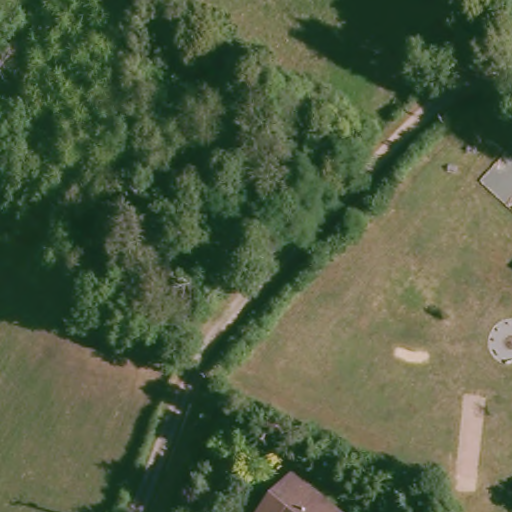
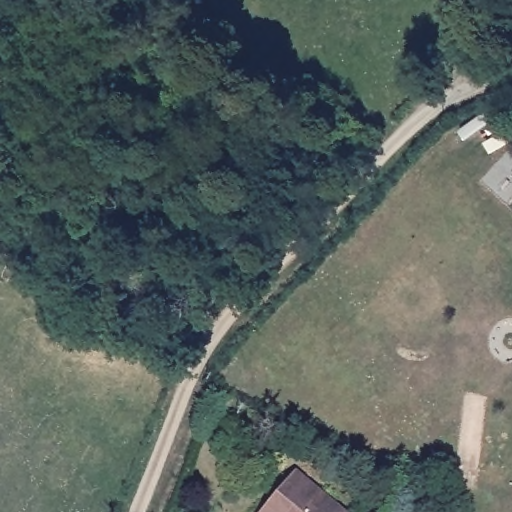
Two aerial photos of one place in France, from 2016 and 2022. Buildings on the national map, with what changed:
unchanged [(285,480),(297,492),(305,483),(332,508),(330,511),(331,512),(258,512),(257,511),(285,480)]

